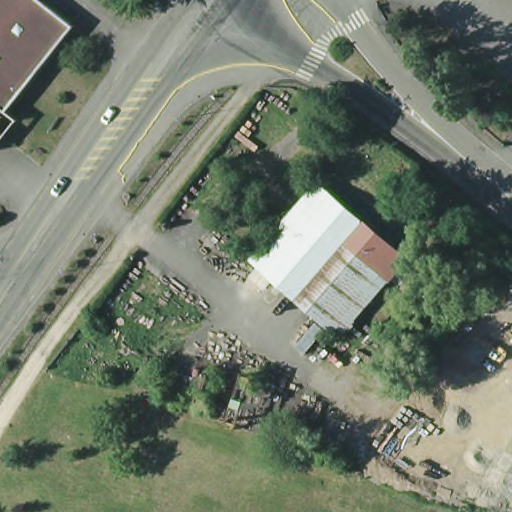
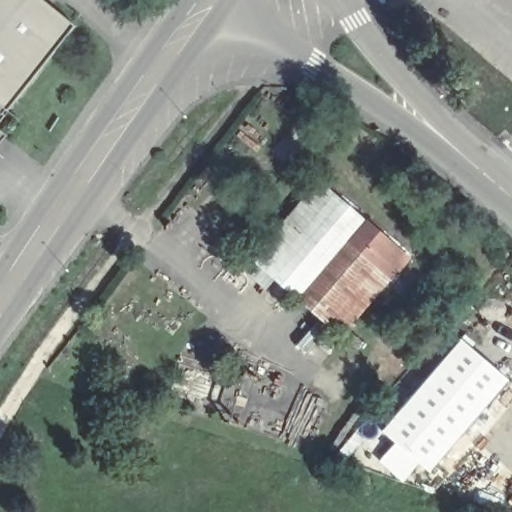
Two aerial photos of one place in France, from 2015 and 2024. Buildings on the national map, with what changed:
unchanged [(75,27),(22,93),(0,75),(0,0),(42,0),(75,27)]
unchanged [(0,145),(0,75),(22,93),(8,112),(19,121),(0,145)]
unchanged [(302,301),(256,261),(322,186),(367,225),(302,301)]
unchanged [(405,257),(401,262),(408,268),(346,339),(302,301),(367,225),(405,257)]
new [(509,382),(425,483),(373,440),(459,338),(509,382)]

